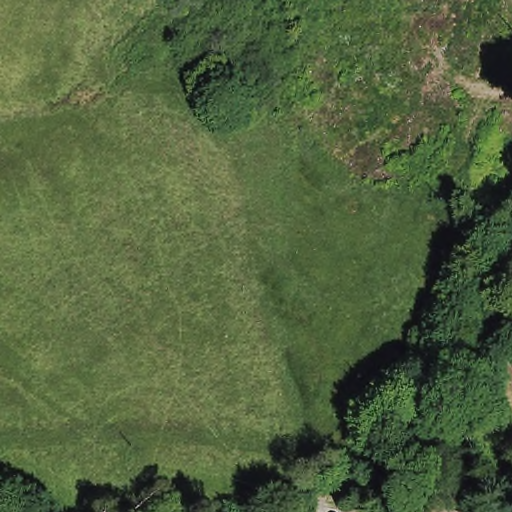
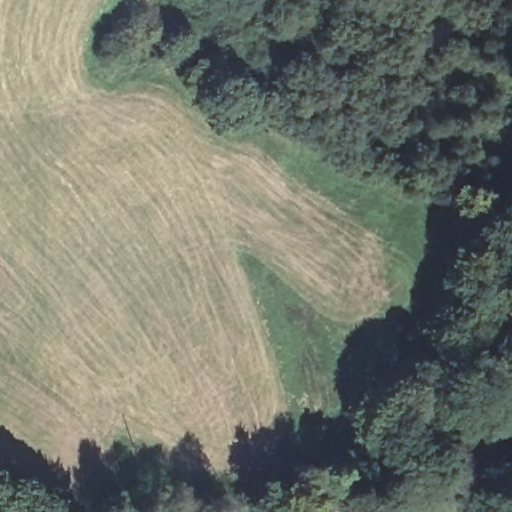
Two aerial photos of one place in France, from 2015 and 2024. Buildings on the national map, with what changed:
[]

